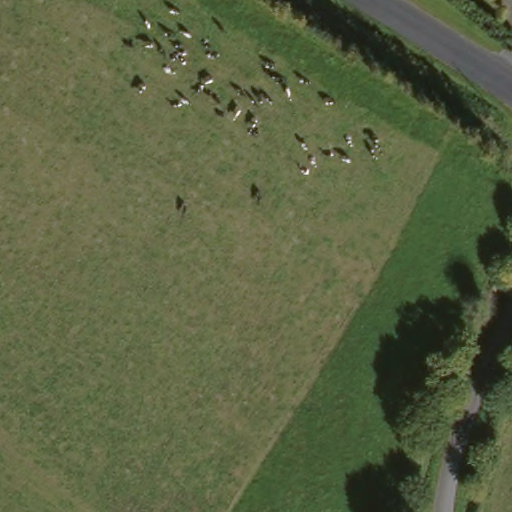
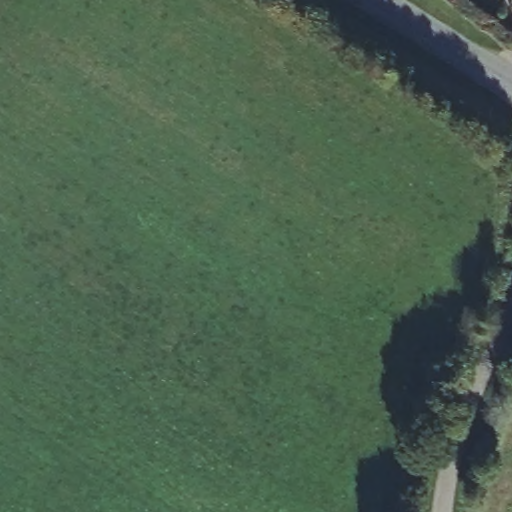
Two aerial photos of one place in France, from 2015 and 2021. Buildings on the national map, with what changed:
[]

